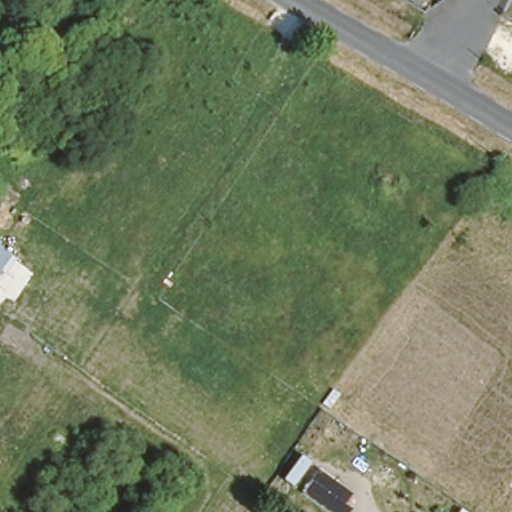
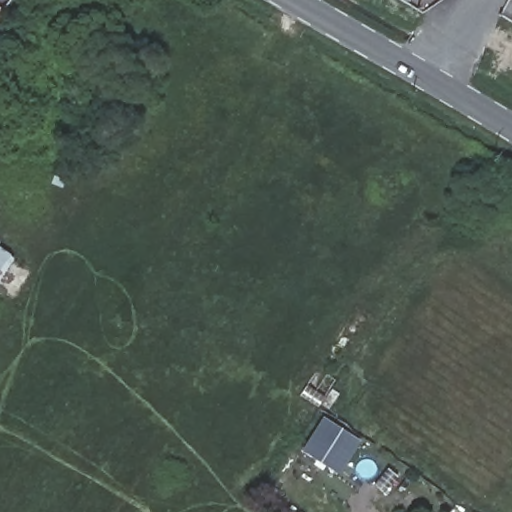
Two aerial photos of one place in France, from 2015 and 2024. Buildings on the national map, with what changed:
new [(0,279),(0,248),(15,258),(0,279)]
new [(339,475),(301,450),(323,417),(361,441),(339,475)]

